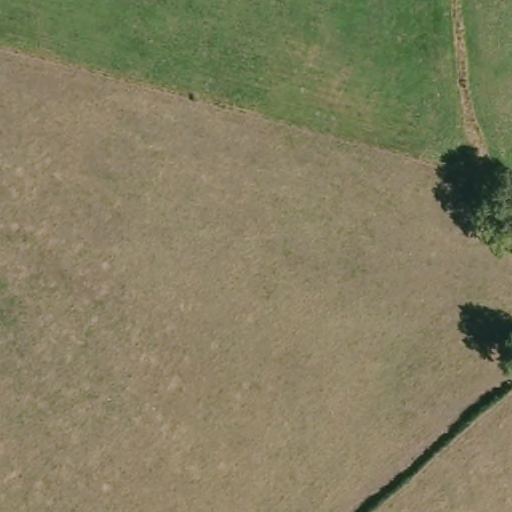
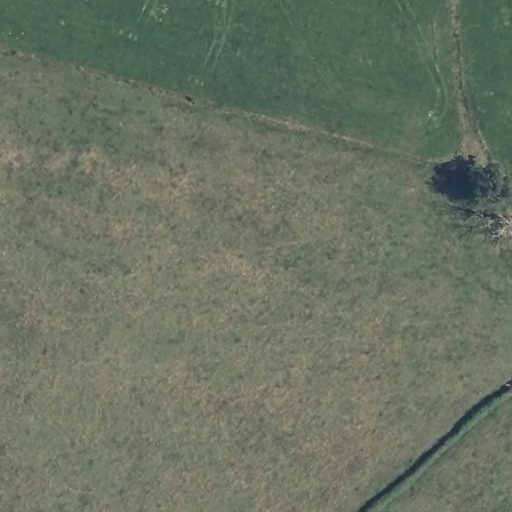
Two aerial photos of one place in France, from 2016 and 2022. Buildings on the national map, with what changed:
[]

